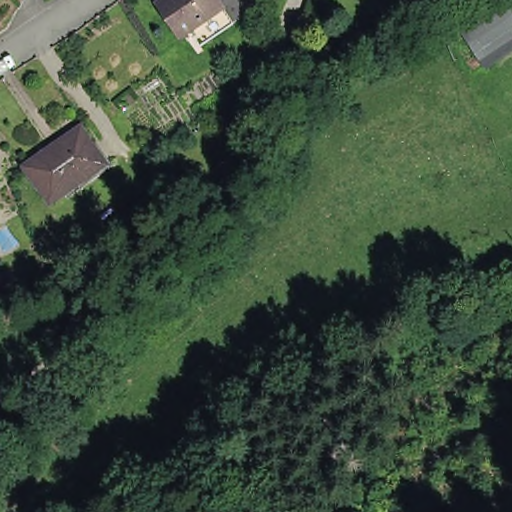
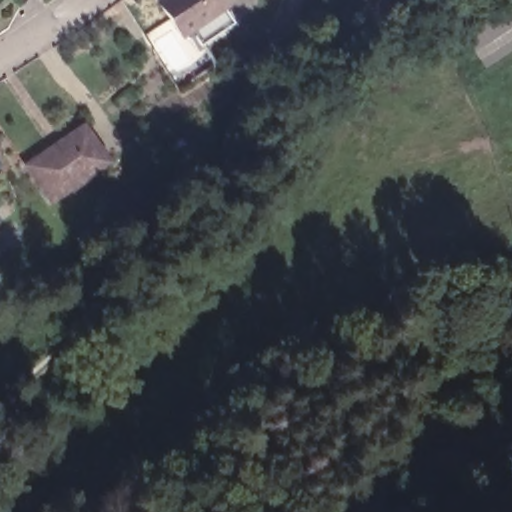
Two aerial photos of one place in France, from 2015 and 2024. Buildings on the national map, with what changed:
unchanged [(197,45),(187,30),(179,36),(156,3),(161,0),(214,0),(220,8),(230,23),(197,45)]
unchanged [(502,10),(512,24),(512,28),(477,54),(465,39),(502,10)]
unchanged [(77,128),(101,162),(47,199),(22,165),(77,128)]

